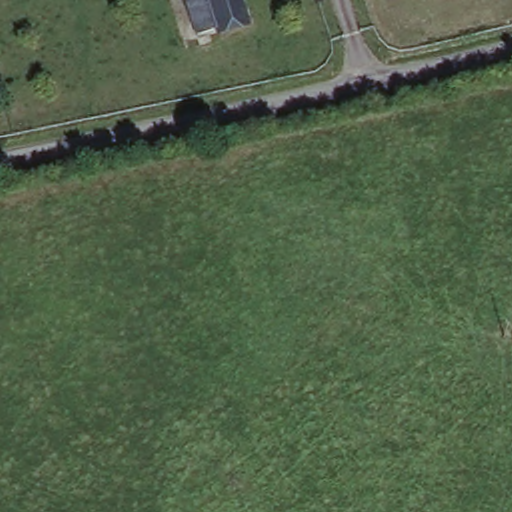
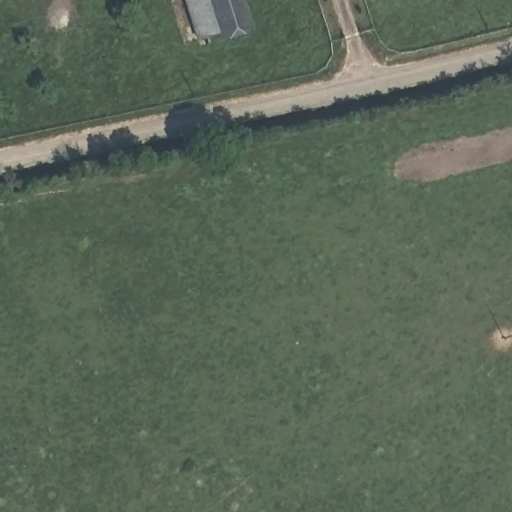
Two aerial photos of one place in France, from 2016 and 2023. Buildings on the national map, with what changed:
unchanged [(198,42),(183,0),(239,0),(249,27),(198,42)]

